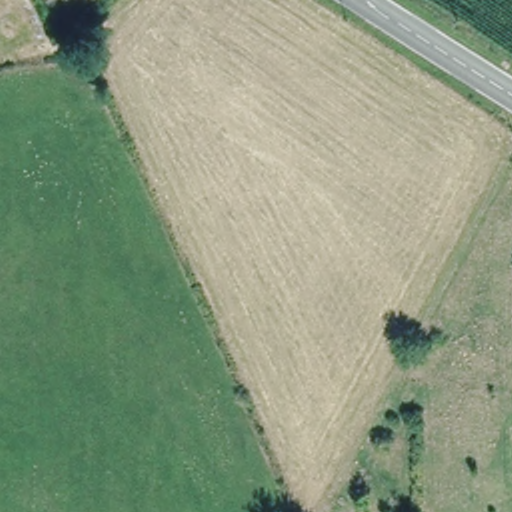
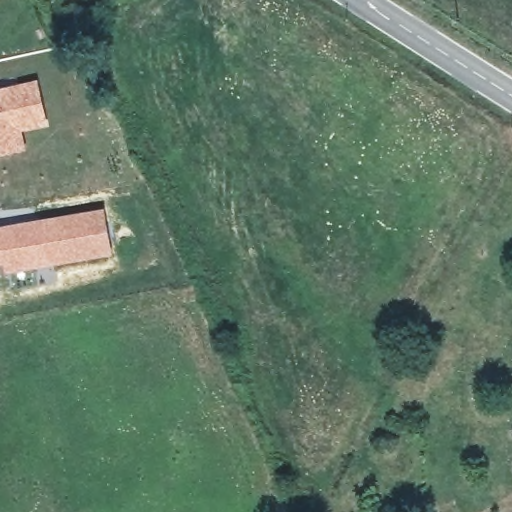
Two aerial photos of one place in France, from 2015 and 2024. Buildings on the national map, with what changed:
new [(48,125),(22,131),(26,149),(0,156),(0,88),(38,79),(48,125)]
new [(112,255),(5,273),(3,266),(0,267),(0,226),(105,208),(112,255)]

